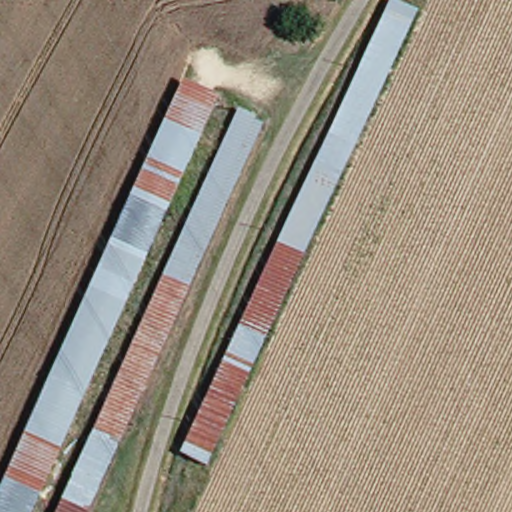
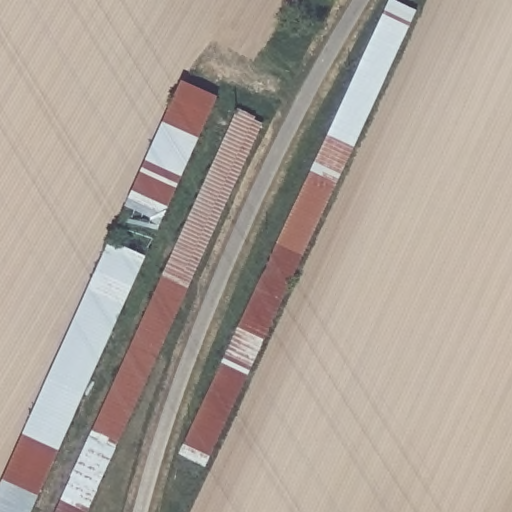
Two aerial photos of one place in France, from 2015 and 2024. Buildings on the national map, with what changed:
unchanged [(210,465),(182,451),(393,0),(405,0),(420,7),(210,465)]
unchanged [(0,512),(0,499),(189,79),(222,94),(36,512),(0,512)]
unchanged [(59,512),(244,107),(267,119),(90,512),(59,512)]

